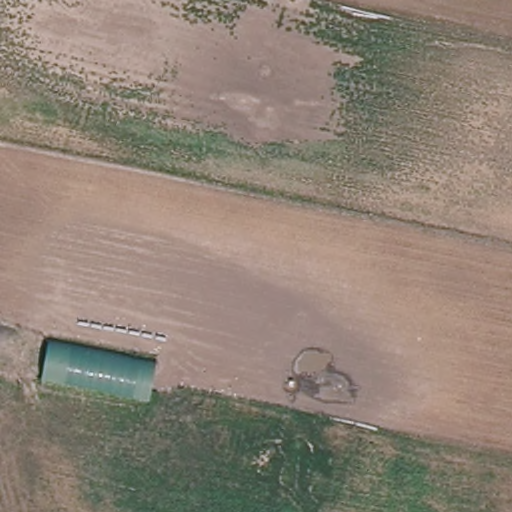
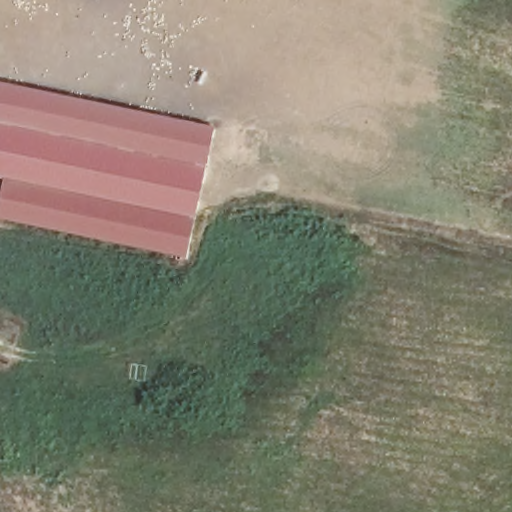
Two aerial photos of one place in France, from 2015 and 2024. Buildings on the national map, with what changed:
new [(216,127),(189,260),(0,219),(0,201),(5,180),(0,179),(0,83),(216,127)]

